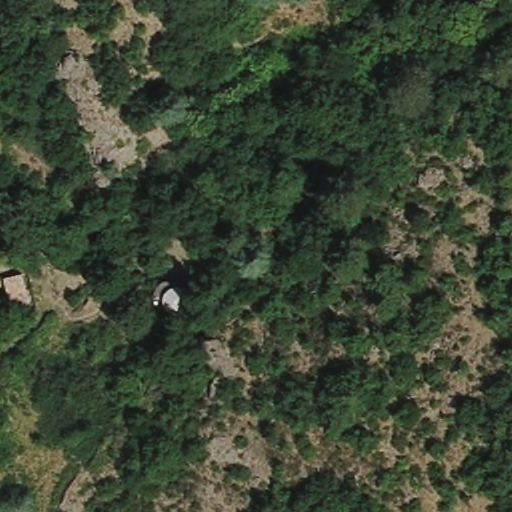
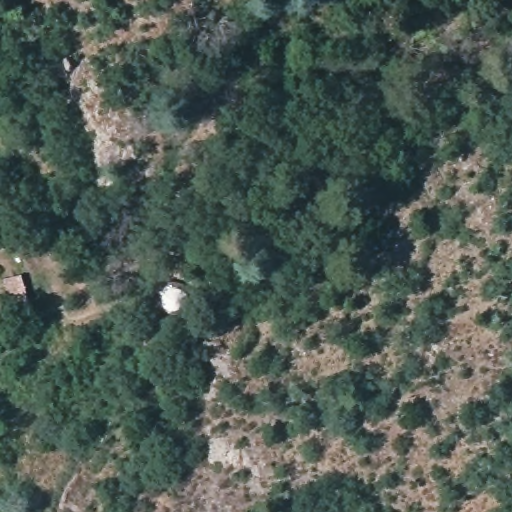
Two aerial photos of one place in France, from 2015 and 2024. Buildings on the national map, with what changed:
unchanged [(8,320),(0,322),(0,302),(5,301),(2,278),(22,275),(29,306),(7,310),(8,320)]

